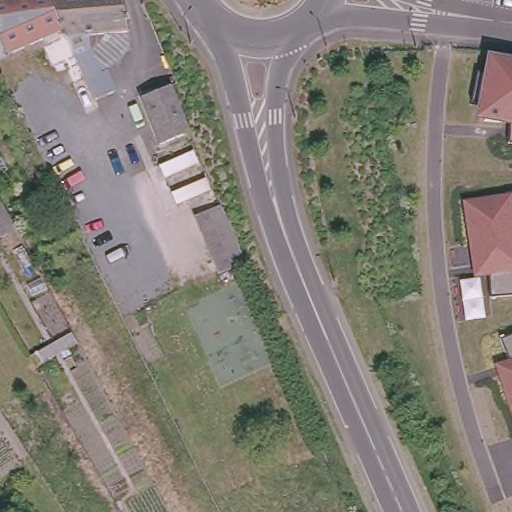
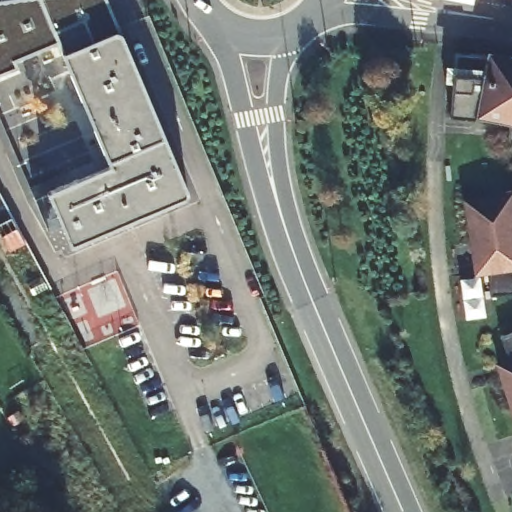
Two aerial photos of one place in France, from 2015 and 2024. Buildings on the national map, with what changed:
demolished [(14,2),(22,1),(37,35),(0,55),(0,0),(13,0),(14,2)]
new [(48,194),(110,167),(65,56),(59,41),(13,61),(16,67),(0,74),(0,3),(23,0),(106,0),(120,35),(186,196),(70,244),(48,194)]
demolished [(22,1),(14,2),(13,0),(45,0),(80,79),(69,84),(59,61),(47,66),(38,45),(41,43),(37,35),(22,1)]
demolished [(85,91),(80,79),(45,0),(116,0),(118,7),(123,31),(90,36),(90,46),(80,46),(93,73),(100,71),(108,91),(89,99),(85,91)]
unchanged [(512,145),(510,144),(510,125),(474,119),(476,101),(473,100),(478,74),(481,75),(486,53),(512,56),(512,145)]
demolished [(189,133),(161,145),(140,99),(170,87),(189,133)]
unchanged [(490,277),(474,281),(462,201),(512,193),(512,296),(491,298),(490,277)]
unchanged [(4,203),(17,226),(1,234),(0,233),(0,195),(4,203)]
demolished [(243,250),(245,255),(217,266),(193,209),(220,197),(243,250)]
unchanged [(510,358),(502,337),(512,334),(512,419),(493,365),(510,358)]

